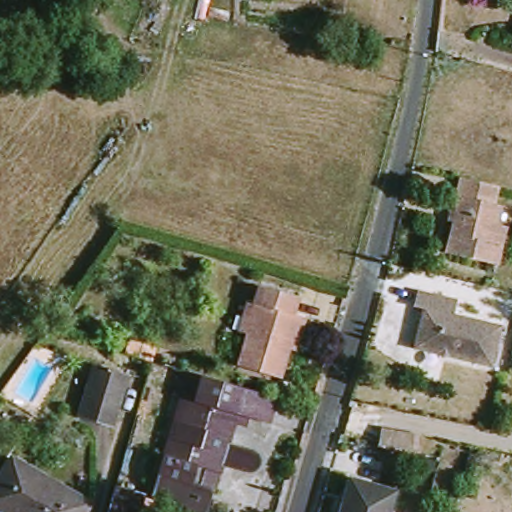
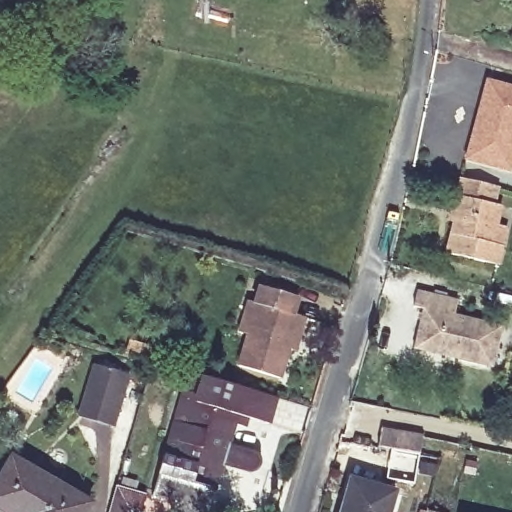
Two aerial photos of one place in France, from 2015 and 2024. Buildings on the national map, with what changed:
new [(478,115),(487,82),(512,89),(512,156),(509,170),(466,158),(475,128),(478,115)]
unchanged [(498,187),(493,205),(499,207),(491,246),(494,247),(491,266),(447,255),(460,198),(457,197),(462,179),(498,187)]
unchanged [(298,357),(287,354),(280,384),(241,375),(249,344),(237,341),(245,308),(256,309),(261,292),(300,301),(295,321),(306,324),(298,357)]
unchanged [(428,313),(419,310),(422,294),(462,304),(459,318),(507,330),(497,370),(419,352),(428,313)]
unchanged [(158,348),(154,360),(130,353),(133,341),(158,348)]
unchanged [(128,375),(113,426),(80,416),(95,366),(128,375)]
unchanged [(176,427),(181,428),(190,400),(182,397),(189,376),(205,381),(278,403),(270,431),(248,425),(245,434),(236,431),(229,452),(253,459),(255,460),(257,461),(258,463),(259,465),(260,468),(260,471),(259,474),(256,477),(254,479),(251,479),(247,479),(223,472),(221,480),(207,476),(202,491),(215,495),(209,512),(173,512),(175,509),(152,502),(176,427)]
unchanged [(379,448),(381,430),(423,437),(420,454),(379,448)]
unchanged [(0,510),(0,478),(11,458),(91,504),(86,512),(4,512),(0,510)]
unchanged [(395,492),(389,512),(341,512),(351,480),(395,492)]
new [(116,488),(143,495),(139,509),(126,506),(124,512),(109,512),(116,488)]

